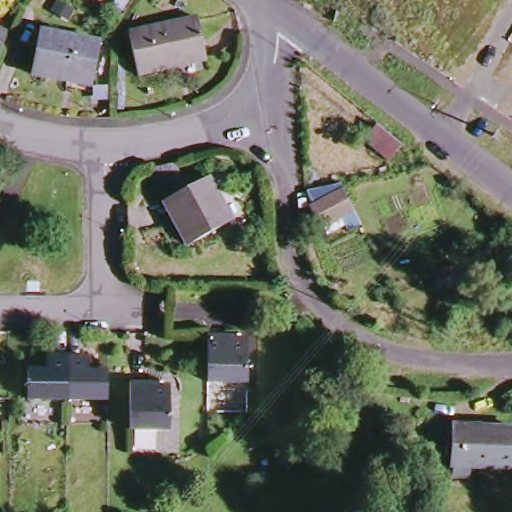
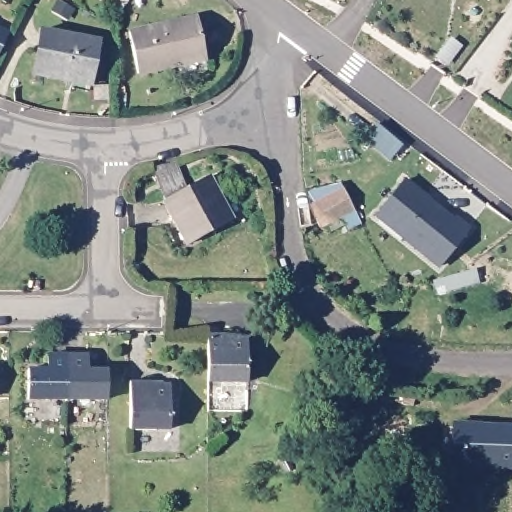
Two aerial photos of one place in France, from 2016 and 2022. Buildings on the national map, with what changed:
unchanged [(210,61),(180,68),(180,70),(143,79),(133,36),(202,21),(210,61)]
unchanged [(0,65),(0,31),(14,38),(0,65)]
unchanged [(102,42),(95,87),(40,76),(48,32),(102,42)]
new [(447,41),(458,49),(443,69),(432,61),(447,41)]
unchanged [(365,143),(375,126),(400,146),(389,161),(365,143)]
unchanged [(369,227),(354,236),(348,225),(327,236),(315,209),(315,200),(324,197),(322,179),(340,170),(351,192),(369,227)]
new [(465,231),(440,268),(375,218),(405,179),(465,231)]
unchanged [(213,181),(234,223),(193,245),(170,204),(213,181)]
unchanged [(437,301),(435,286),(472,278),(474,292),(437,301)]
unchanged [(217,335),(237,335),(237,341),(256,341),(257,383),(217,383),(217,335)]
unchanged [(38,398),(39,369),(57,369),(57,355),(80,355),(79,399),(38,398)]
unchanged [(79,399),(80,355),(100,356),(100,369),(118,368),(118,400),(79,399)]
unchanged [(160,385),(160,390),(180,391),(180,431),(139,431),(140,385),(160,385)]
unchanged [(480,466),(479,477),(461,476),(462,464),(457,464),(459,425),(474,426),(512,428),(512,467),(480,466)]

